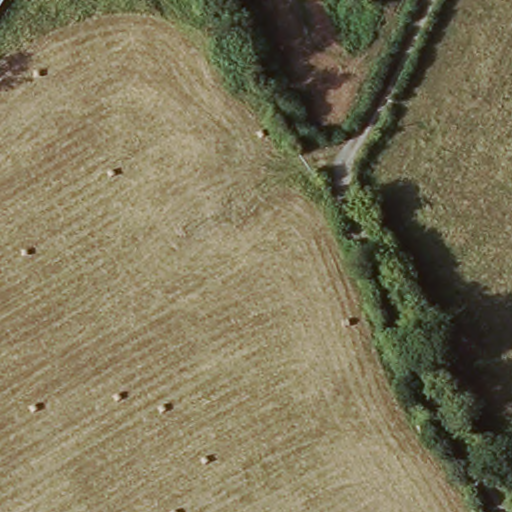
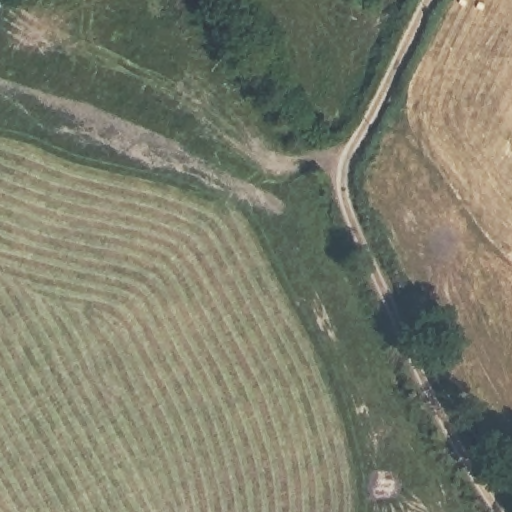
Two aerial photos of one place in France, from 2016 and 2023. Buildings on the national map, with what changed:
unchanged [(11,0),(0,16),(0,0),(11,0)]
unchanged [(189,0),(208,0),(212,11),(196,21),(189,0)]

